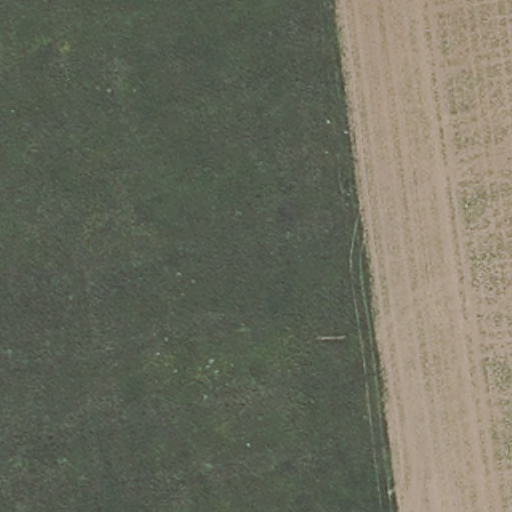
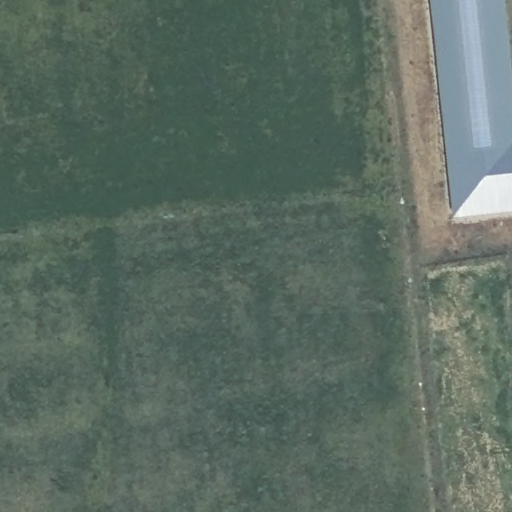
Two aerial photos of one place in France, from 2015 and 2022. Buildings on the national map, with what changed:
new [(512,134),(512,144),(452,151),(437,0),(498,0),(512,134)]
new [(452,151),(512,144),(512,207),(459,212),(452,151)]

